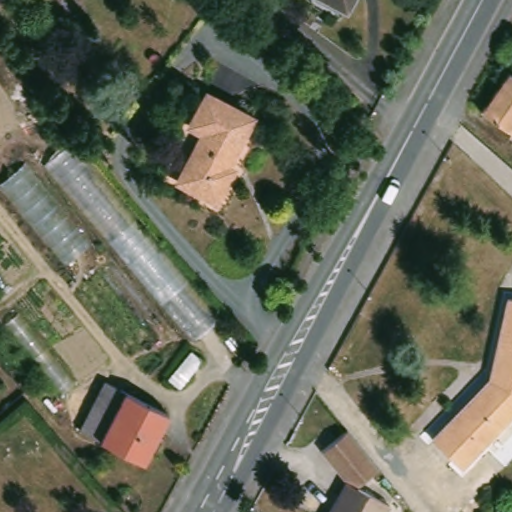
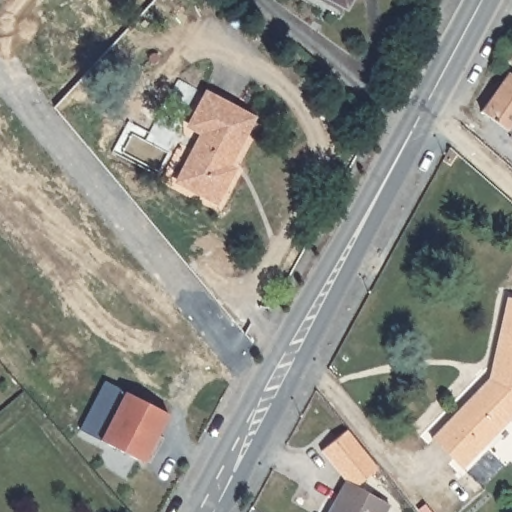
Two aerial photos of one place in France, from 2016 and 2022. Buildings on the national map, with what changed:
unchanged [(320,0),(347,0),(341,11),(320,0)]
unchanged [(507,72),(512,75),(512,136),(485,121),(507,72)]
unchanged [(252,117),(226,167),(231,169),(213,202),(175,183),(200,135),(187,127),(205,93),(252,117)]
demolished [(213,317),(185,339),(41,167),(73,145),(213,317)]
demolished [(61,261),(0,186),(0,183),(24,163),(90,240),(61,261)]
unchanged [(455,471),(426,444),(483,385),(506,298),(512,299),(512,415),(455,471)]
unchanged [(154,426),(162,429),(148,460),(143,457),(140,463),(108,445),(80,431),(106,378),(164,407),(154,426)]
unchanged [(377,468),(354,483),(387,501),(381,512),(326,512),(344,478),(322,445),(350,427),(377,468)]

